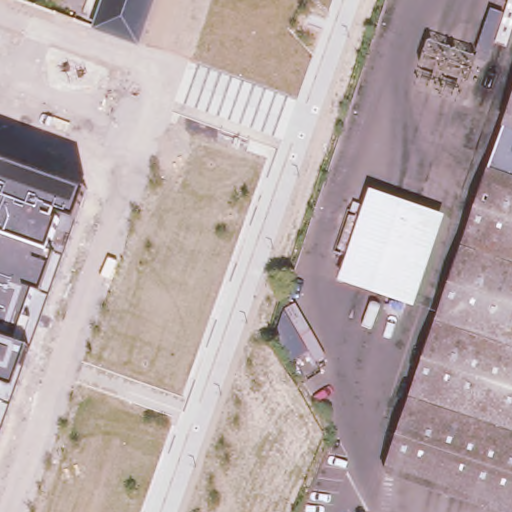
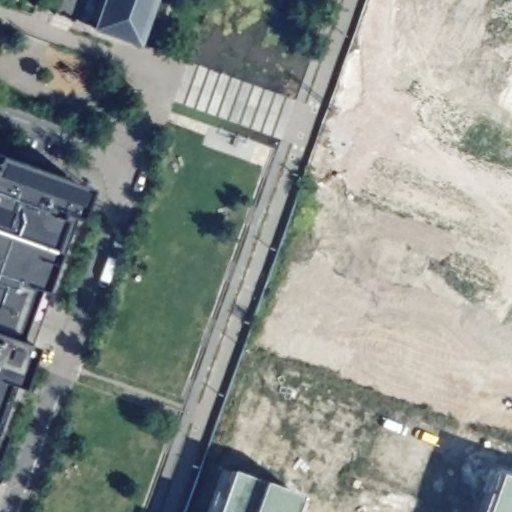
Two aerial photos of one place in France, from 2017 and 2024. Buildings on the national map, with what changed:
unchanged [(96,25),(105,0),(154,0),(139,41),(96,25)]
demolished [(481,501),(386,469),(512,102),(512,418),(481,501)]
unchanged [(0,421),(0,159),(82,190),(0,421)]
demolished [(481,501),(512,418),(512,512),(481,501)]
new [(229,471),(260,482),(297,495),(291,512),(215,512),(229,471)]
new [(512,479),(512,512),(483,512),(496,474),(512,479)]

